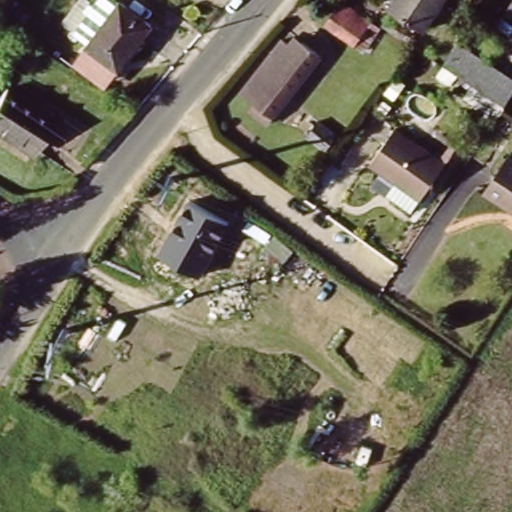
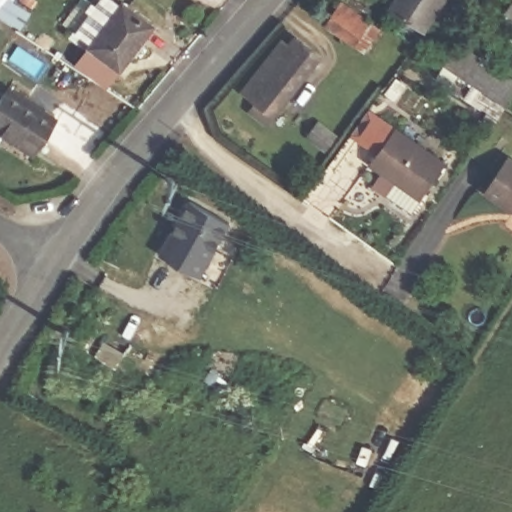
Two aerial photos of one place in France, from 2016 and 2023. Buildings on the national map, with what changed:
unchanged [(123,64),(92,41),(122,0),(130,0),(157,20),(123,64)]
unchanged [(445,0),(427,27),(393,5),(396,0),(445,0)]
unchanged [(376,29),(360,52),(320,25),(336,2),(376,29)]
unchanged [(507,14),(512,5),(512,18),(507,14)]
unchanged [(289,117),(278,110),(271,119),(254,106),(261,97),(247,87),(288,35),(296,40),(302,32),(307,36),(326,50),(332,55),(300,94),(305,98),(289,117)]
unchanged [(463,39),(512,72),(512,95),(509,99),(450,59),(463,39)]
unchanged [(37,151),(0,129),(0,102),(10,85),(59,114),(37,151)]
unchanged [(335,137),(325,150),(307,135),(317,122),(335,137)]
unchanged [(395,185),(402,174),(378,157),(401,123),(452,157),(428,191),(427,190),(419,202),(395,185)]
unchanged [(489,188),(512,152),(512,204),(489,188)]
unchanged [(189,201),(227,223),(198,276),(160,255),(189,201)]

